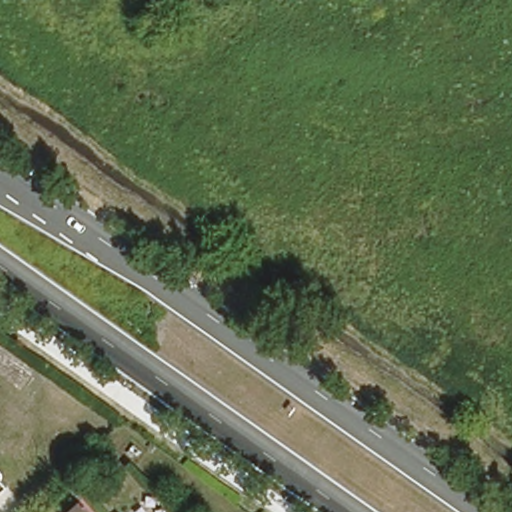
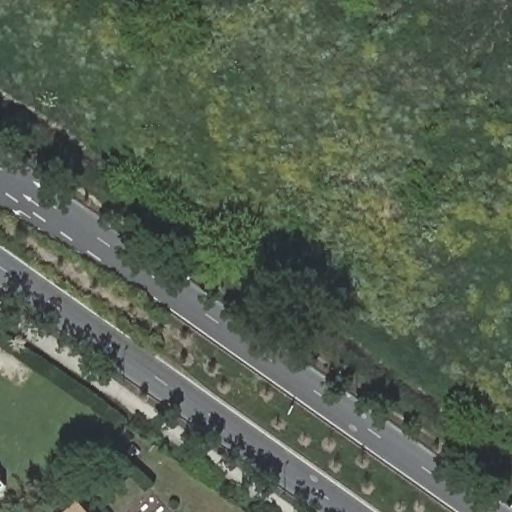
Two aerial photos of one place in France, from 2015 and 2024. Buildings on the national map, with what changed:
unchanged [(0,497),(0,485),(6,492),(0,497)]
unchanged [(79,502),(88,512),(68,512),(79,502)]

